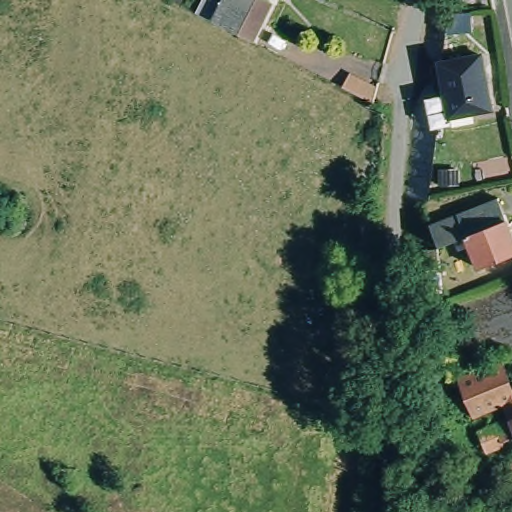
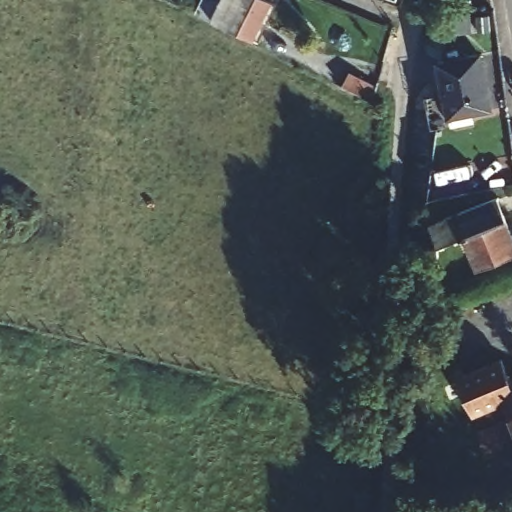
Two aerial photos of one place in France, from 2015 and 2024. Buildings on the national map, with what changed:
unchanged [(253,38),(212,18),(222,0),(269,0),(273,2),(253,38)]
unchanged [(472,30),(445,30),(448,10),(470,9),(472,30)]
unchanged [(468,120),(452,122),(440,59),(480,51),(490,107),(472,110),(474,119),(468,120)]
unchanged [(457,234),(444,240),(435,217),(502,189),(512,215),(512,248),(483,260),(472,234),(460,239),(457,234)]
unchanged [(447,290),(430,292),(431,242),(447,241),(447,290)]
unchanged [(453,317),(442,343),(427,337),(440,311),(453,317)]
unchanged [(512,382),(512,438),(505,440),(498,423),(511,418),(504,402),(475,413),(459,375),(502,357),(512,382)]

